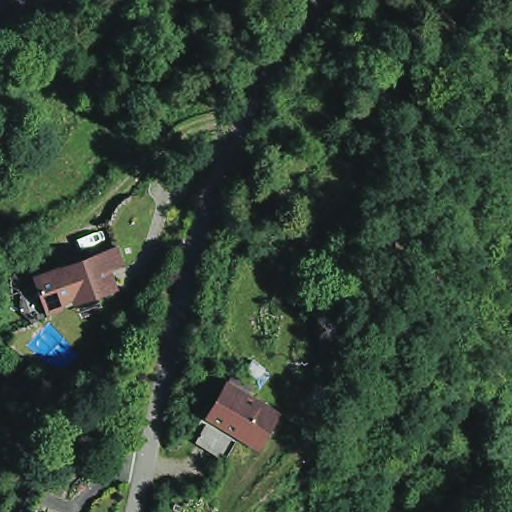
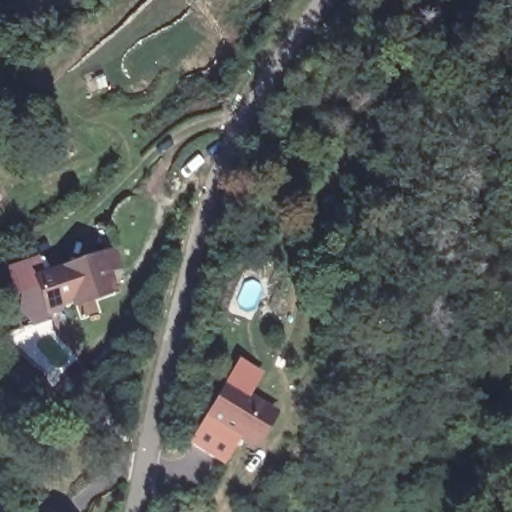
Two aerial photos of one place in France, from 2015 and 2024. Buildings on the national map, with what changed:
unchanged [(126,270),(116,275),(122,293),(50,324),(28,281),(115,249),(126,270)]
unchanged [(193,443),(224,385),(273,412),(254,445),(235,435),(223,460),(193,443)]

